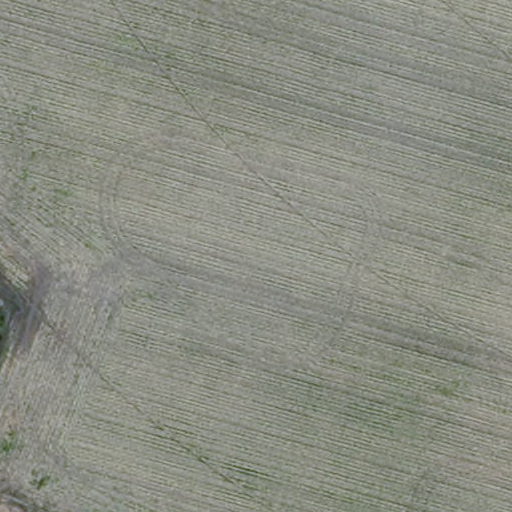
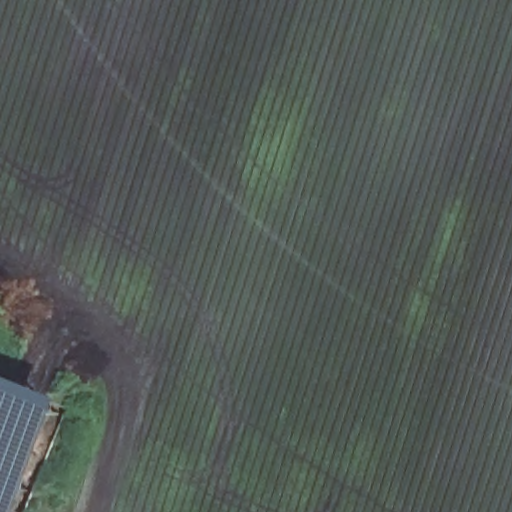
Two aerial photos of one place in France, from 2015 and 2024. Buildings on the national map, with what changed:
new [(69,395),(53,444),(37,477),(24,512),(0,512),(0,368),(69,395)]

